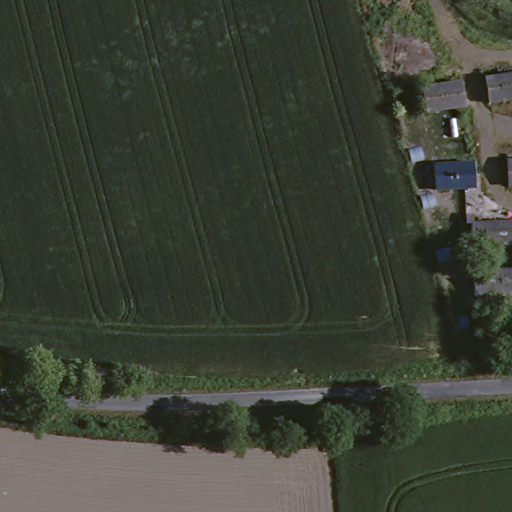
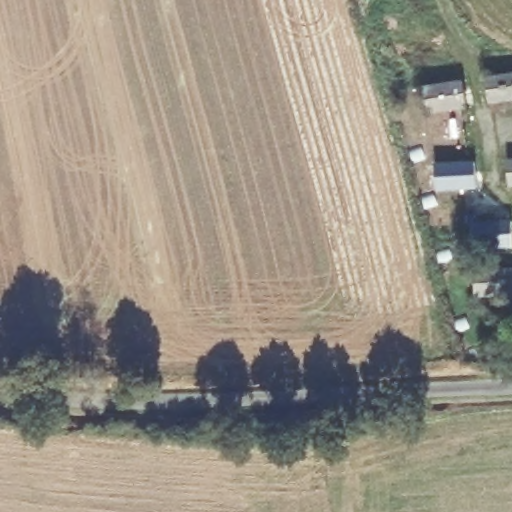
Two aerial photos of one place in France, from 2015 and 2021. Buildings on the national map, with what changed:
unchanged [(512,75),(512,101),(486,104),(482,80),(512,75)]
unchanged [(462,81),(465,107),(425,113),(422,87),(462,81)]
unchanged [(507,187),(506,161),(512,161),(512,187),(507,187)]
unchanged [(475,189),(434,191),(432,165),(474,163),(475,189)]
unchanged [(511,248),(471,249),(470,224),(509,223),(511,248)]
unchanged [(477,300),(477,276),(512,275),(512,300),(477,300)]

